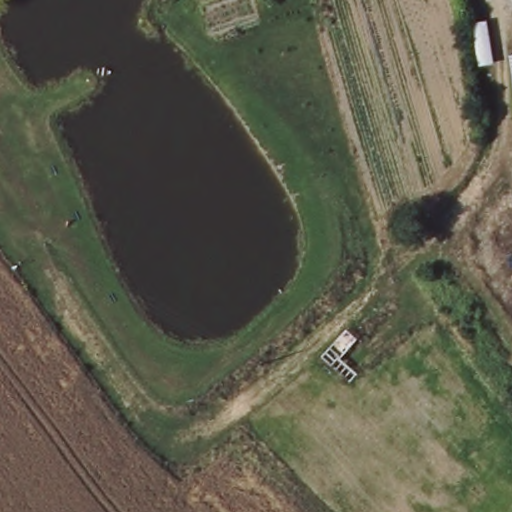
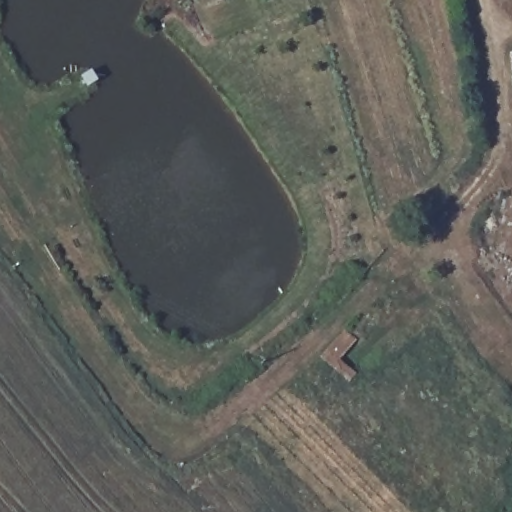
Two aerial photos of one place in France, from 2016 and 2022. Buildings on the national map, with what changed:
unchanged [(512,55),(512,66),(510,55),(512,55)]

